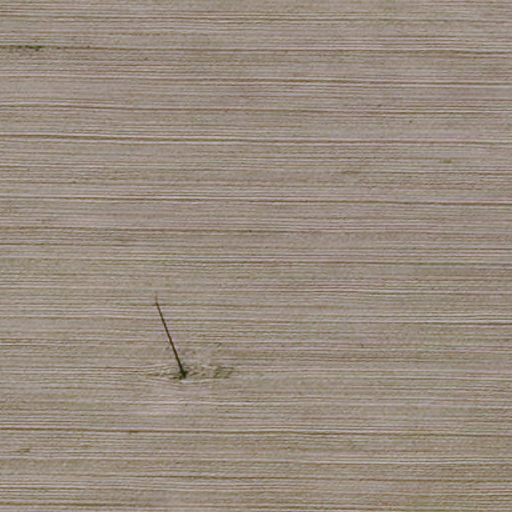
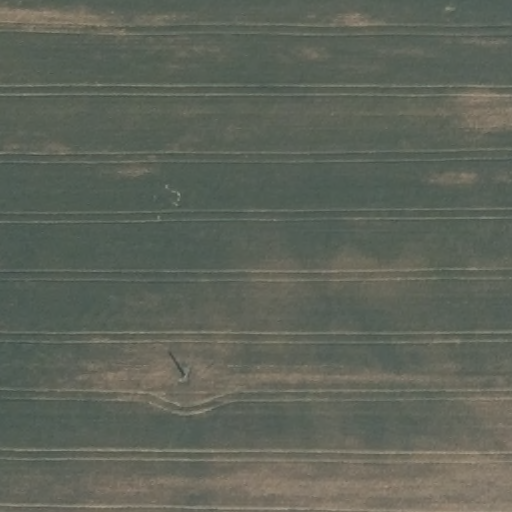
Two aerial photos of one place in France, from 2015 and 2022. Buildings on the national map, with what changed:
[]

